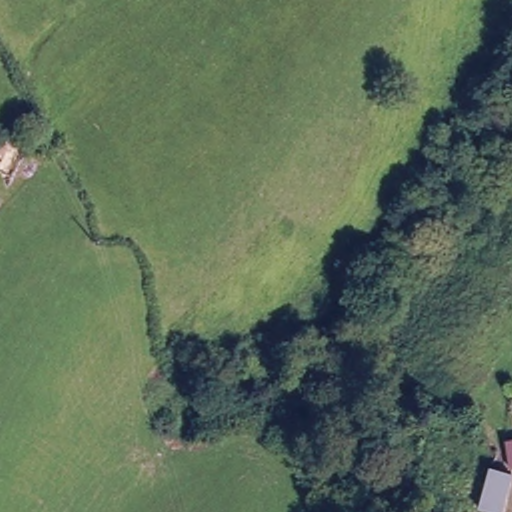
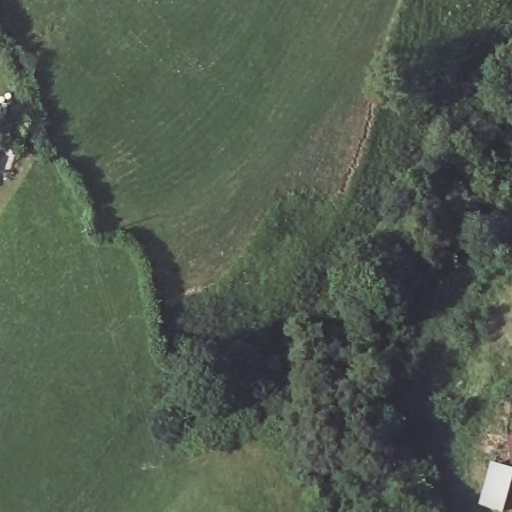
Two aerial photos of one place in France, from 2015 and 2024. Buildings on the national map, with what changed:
unchanged [(508,440),(512,440),(512,463),(508,463),(508,440)]
unchanged [(512,483),(512,512),(488,512),(490,482),(512,483)]

